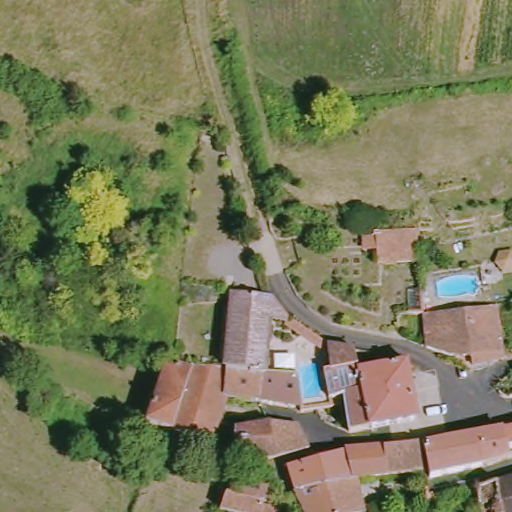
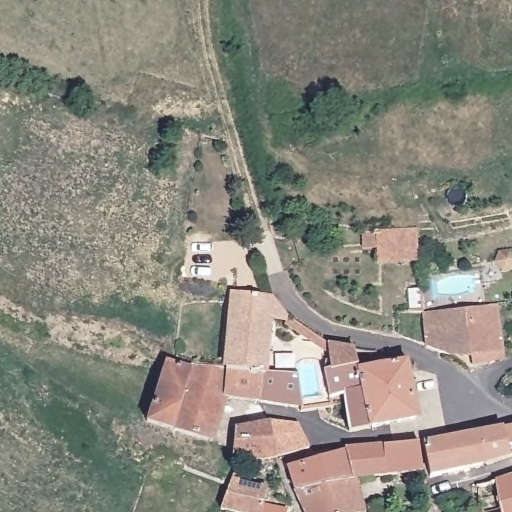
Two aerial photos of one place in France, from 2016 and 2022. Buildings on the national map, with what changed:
unchanged [(410,231),(415,262),(375,269),(373,256),(360,258),(357,240),(370,238),(369,235),(375,237),(410,231)]
unchanged [(512,272),(503,272),(497,264),(500,254),(510,252),(512,254),(512,272)]
unchanged [(329,369),(334,407),(304,410),(304,405),(265,398),(229,397),(213,443),(147,422),(169,361),(194,369),(196,364),(229,367),(233,293),(272,295),(291,316),(288,320),(272,319),(267,374),(300,375),(329,369)]
unchanged [(433,346),(430,317),(429,312),(458,312),(504,306),(509,348),(510,357),(477,369),(455,356),(433,346)]
unchanged [(341,395),(341,399),(343,407),(334,407),(329,369),(335,369),(331,345),(355,348),(363,368),(409,361),(419,417),(374,427),(373,427),(352,432),(347,394),(341,395)]
unchanged [(247,457),(240,454),(243,430),(278,427),(276,420),(291,422),(304,423),(308,432),(316,449),(284,456),(271,459),(247,457)]
unchanged [(505,436),(512,435),(512,463),(511,463),(487,470),(433,482),(425,446),(481,439),(505,436)]
unchanged [(290,472),(349,455),(386,451),(420,447),(426,475),(389,479),(357,482),(365,512),(306,512),(299,495),(290,472)]
unchanged [(506,483),(512,481),(512,512),(483,512),(482,488),(506,483)]
unchanged [(268,495),(265,509),(264,512),(224,512),(231,493),(233,485),(268,495)]
unchanged [(281,512),(264,512),(265,509),(281,512)]

